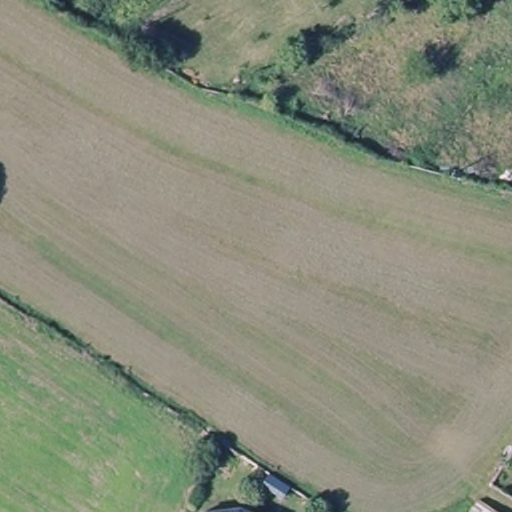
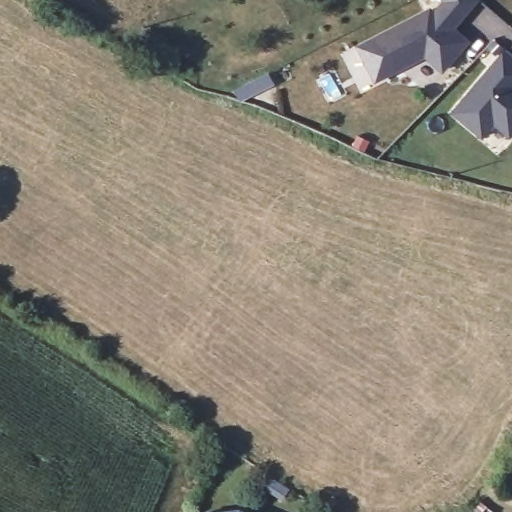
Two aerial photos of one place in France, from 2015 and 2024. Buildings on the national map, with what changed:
new [(476,0),(465,13),(453,26),(465,36),(468,39),(462,47),(444,68),(426,53),(377,78),(360,45),(431,8),(436,12),(446,0),(476,0)]
new [(507,46),(512,51),(512,132),(511,132),(495,119),(483,133),(455,109),(507,46)]
unchanged [(477,512),(483,504),(495,512),(477,512)]

